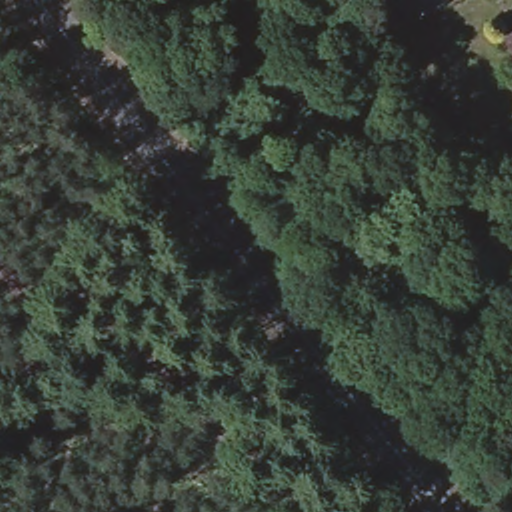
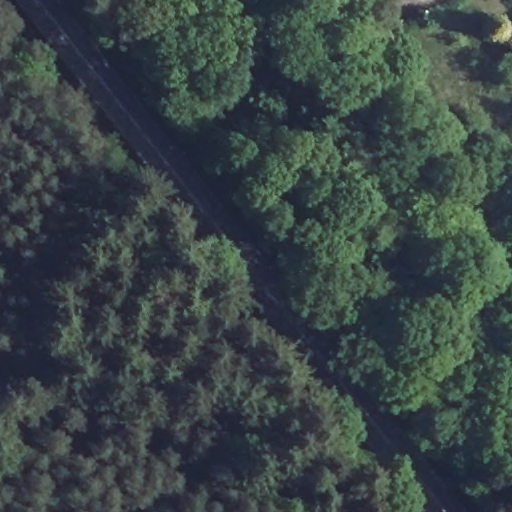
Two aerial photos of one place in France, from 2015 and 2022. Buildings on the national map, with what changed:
unchanged [(512,32),(512,61),(499,40),(512,32)]

